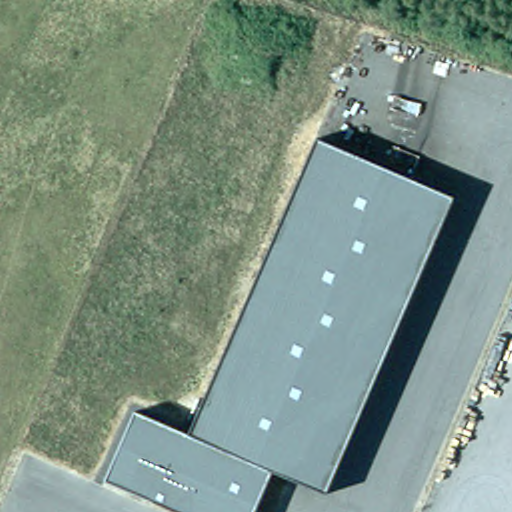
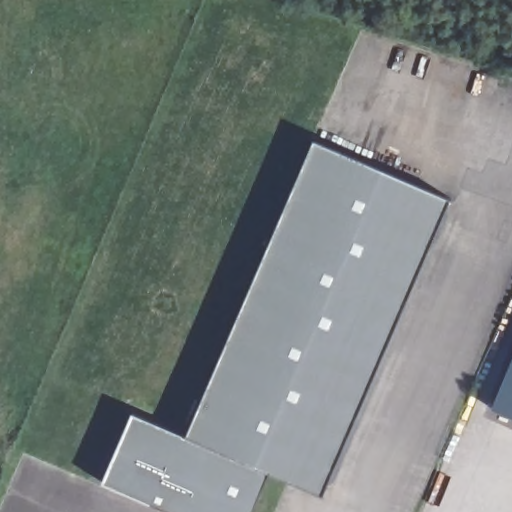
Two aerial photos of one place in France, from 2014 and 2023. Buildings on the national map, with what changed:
unchanged [(456,197),(325,491),(273,471),(256,512),(184,512),(105,482),(133,413),(188,435),(315,140),(456,197)]
new [(512,353),(512,418),(488,408),(512,353)]

